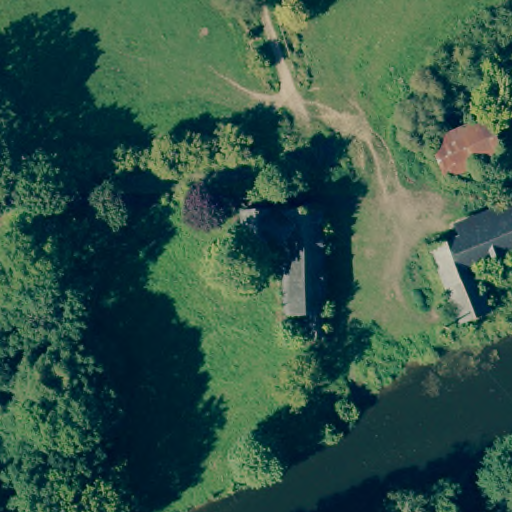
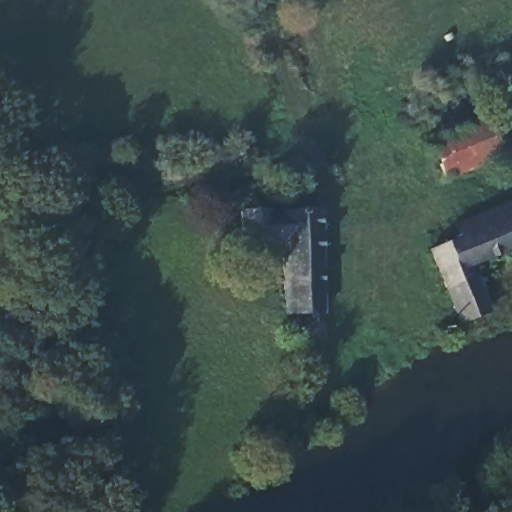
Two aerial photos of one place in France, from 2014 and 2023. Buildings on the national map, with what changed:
unchanged [(493,160),(439,183),(424,145),(478,123),(493,160)]
unchanged [(323,342),(305,341),(306,316),(285,315),(282,242),(241,244),(241,207),(250,207),(245,200),(246,194),(250,189),(257,189),(262,192),(264,199),(262,209),(283,210),(317,207),(323,342)]
unchanged [(512,212),(512,244),(465,263),(482,303),(449,316),(423,247),(512,212)]

